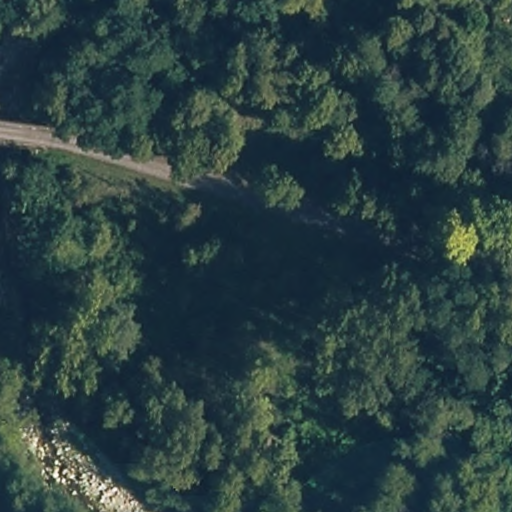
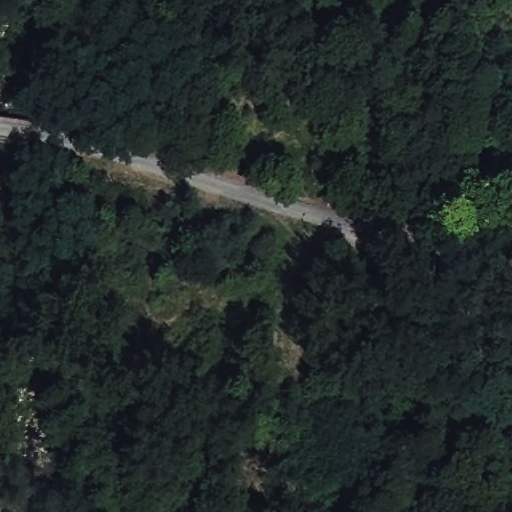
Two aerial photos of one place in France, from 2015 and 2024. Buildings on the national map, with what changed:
[]

